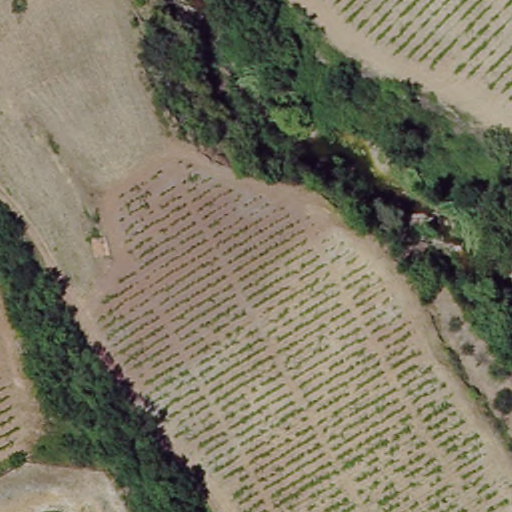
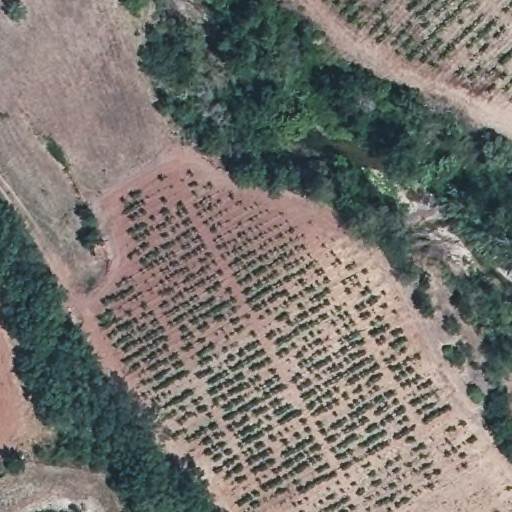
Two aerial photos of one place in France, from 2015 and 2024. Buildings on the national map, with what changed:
unchanged [(111,240),(111,260),(88,260),(89,241),(111,240)]

